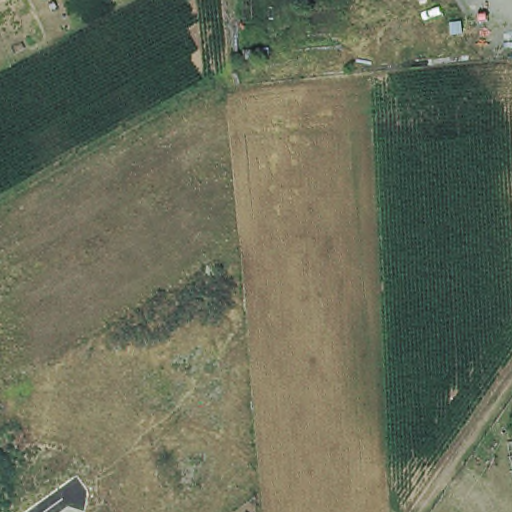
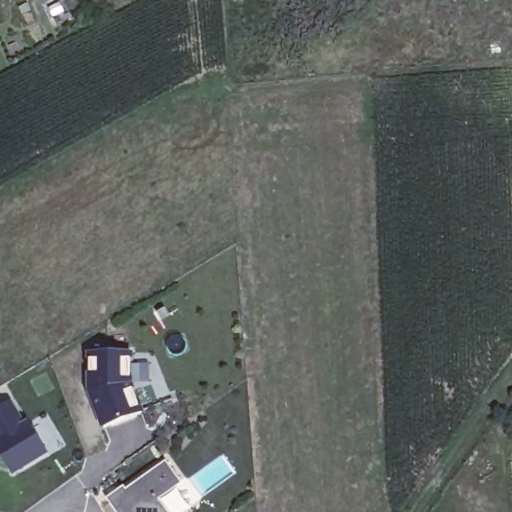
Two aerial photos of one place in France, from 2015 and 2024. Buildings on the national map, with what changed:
new [(89,353),(129,353),(129,384),(140,413),(103,427),(89,391),(89,353)]
new [(22,426),(27,423),(45,452),(11,473),(0,455),(0,407),(8,402),(22,426)]
new [(180,482),(155,500),(163,512),(114,512),(107,502),(165,461),(180,482)]

